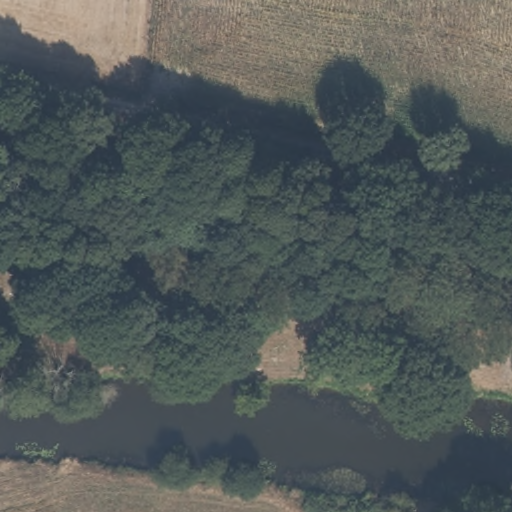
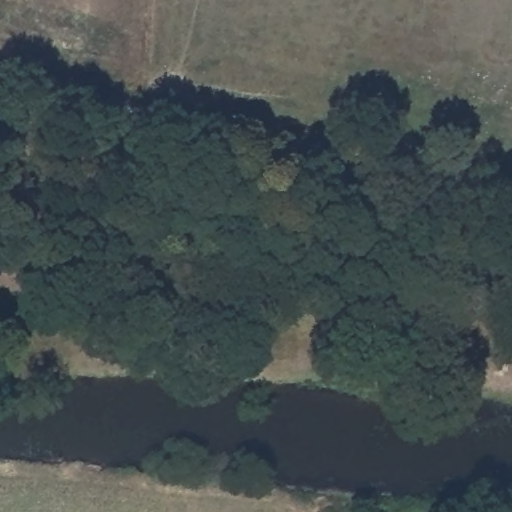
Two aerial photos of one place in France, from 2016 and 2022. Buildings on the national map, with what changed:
[]

